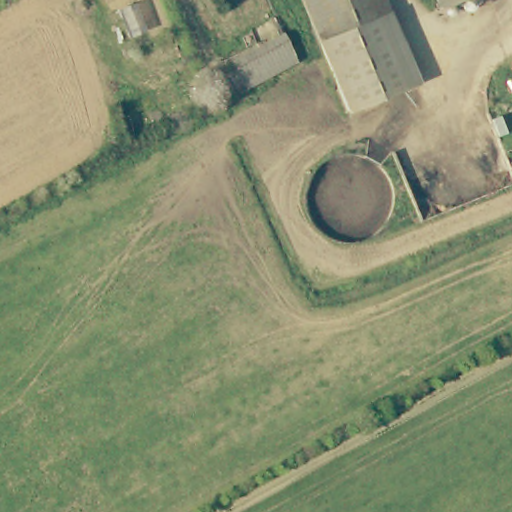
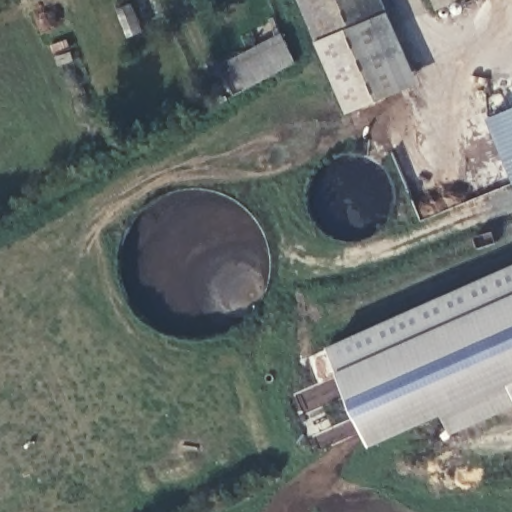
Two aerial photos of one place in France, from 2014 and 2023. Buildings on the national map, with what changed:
unchanged [(372,0),(408,83),(354,106),(309,0),(372,0)]
unchanged [(455,0),(449,2),(448,0),(455,0)]
unchanged [(292,62),(249,87),(243,90),(232,70),(283,41),(292,62)]
new [(512,267),(512,407),(454,433),(446,413),(377,445),(344,370),(330,347),(512,267)]

